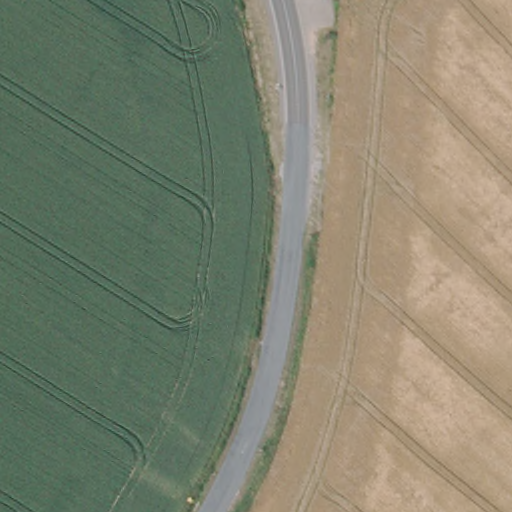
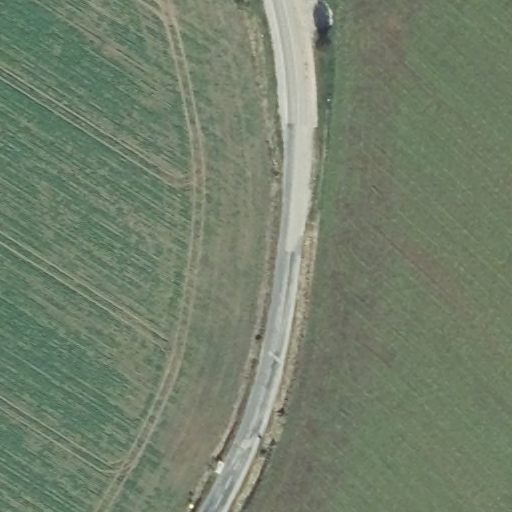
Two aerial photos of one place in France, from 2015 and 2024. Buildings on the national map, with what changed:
[]

